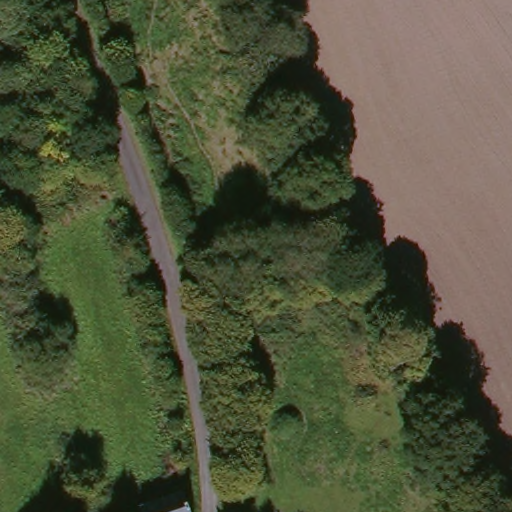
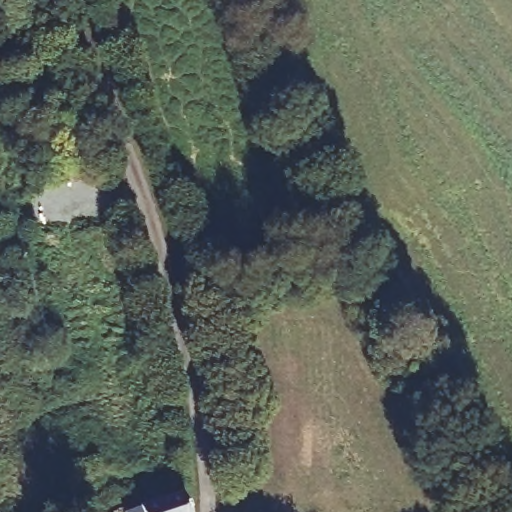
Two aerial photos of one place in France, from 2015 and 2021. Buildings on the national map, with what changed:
unchanged [(184,496),(189,512),(139,512),(138,510),(184,496)]

